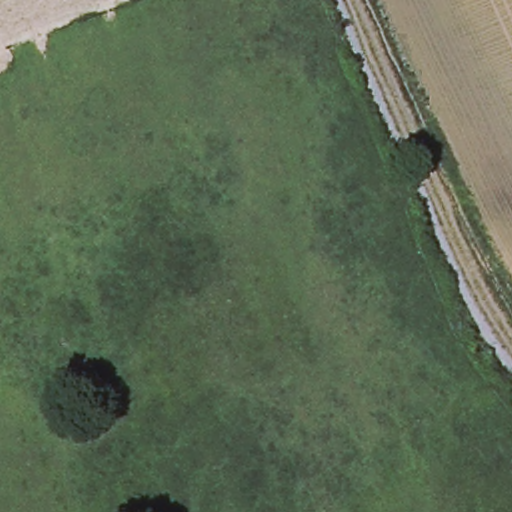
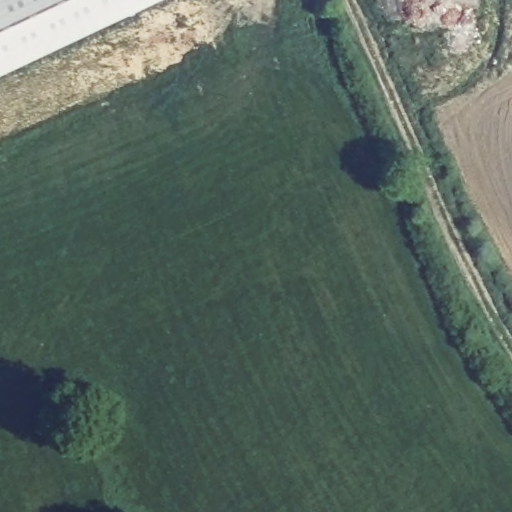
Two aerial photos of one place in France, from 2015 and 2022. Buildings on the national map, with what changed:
new [(164,0),(0,78),(0,0),(164,0)]

